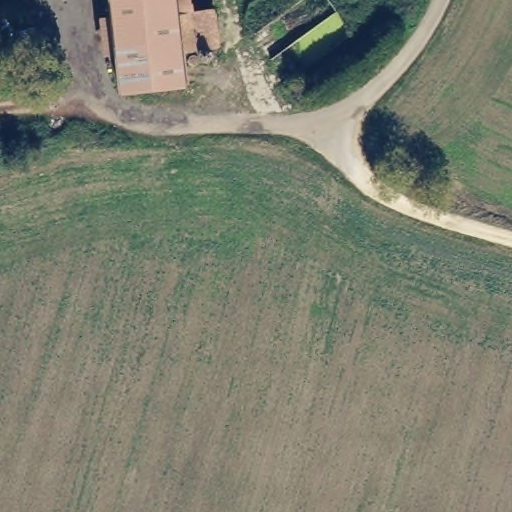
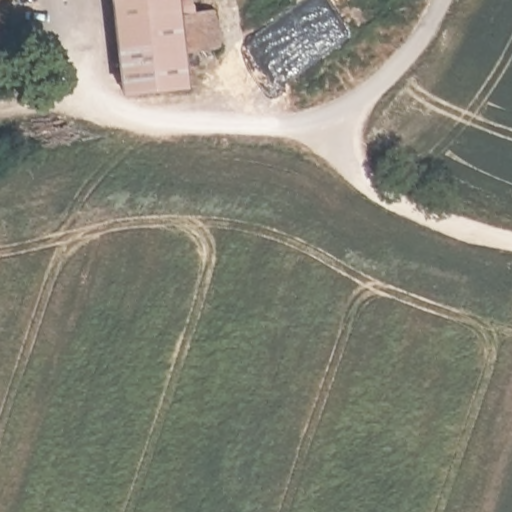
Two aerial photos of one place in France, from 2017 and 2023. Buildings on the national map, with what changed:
unchanged [(197,12),(202,47),(206,83),(138,90),(127,0),(195,0),(197,12)]
unchanged [(231,8),(235,42),(202,47),(197,12),(231,8)]

